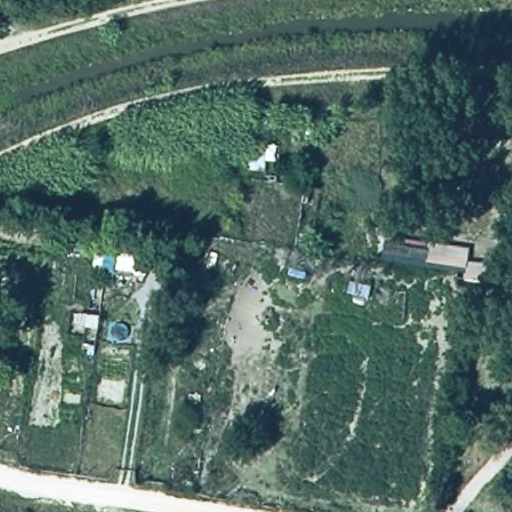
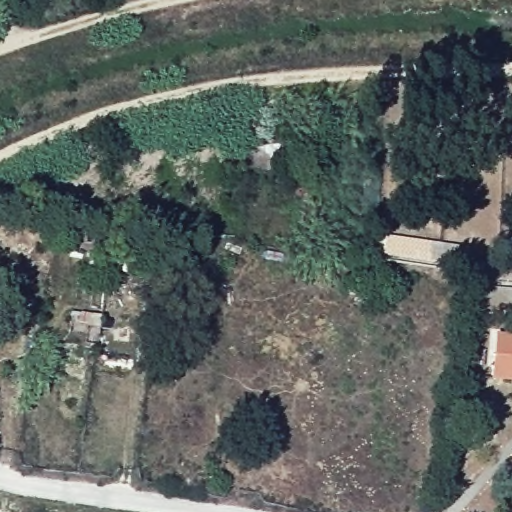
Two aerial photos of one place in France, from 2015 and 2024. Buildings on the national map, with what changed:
unchanged [(512,280),(460,276),(459,265),(384,253),(386,231),(471,241),(471,256),(512,260),(512,280)]
unchanged [(512,306),(466,301),(468,286),(512,291),(512,306)]
new [(495,334),(512,336),(512,382),(491,379),(495,334)]

